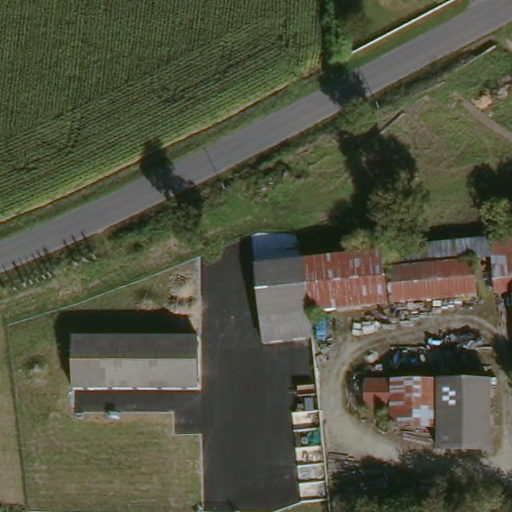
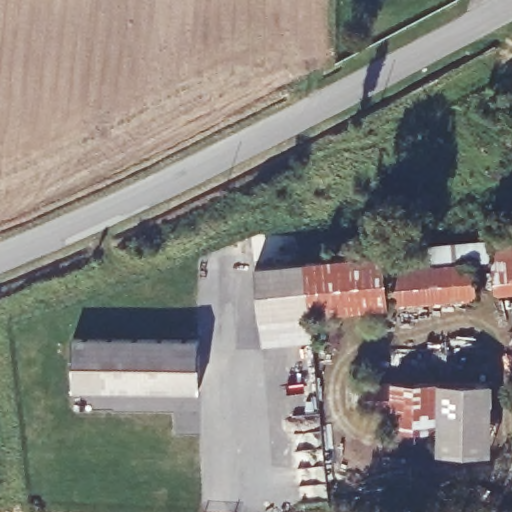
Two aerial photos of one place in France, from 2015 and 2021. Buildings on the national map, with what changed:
unchanged [(512,284),(501,286),(494,232),(512,231),(512,284)]
unchanged [(384,248),(390,300),(316,308),(311,265),(310,257),(384,248)]
unchanged [(477,250),(482,288),(417,295),(394,298),(390,260),(477,250)]
unchanged [(311,265),(316,308),(310,309),(313,342),(262,347),(254,263),(310,257),(311,265)]
unchanged [(204,339),(205,390),(80,392),(79,341),(204,339)]
unchanged [(402,422),(402,405),(375,406),(373,379),(446,378),(446,421),(402,422)]
unchanged [(496,378),(496,449),(446,449),(446,421),(446,378),(496,378)]

